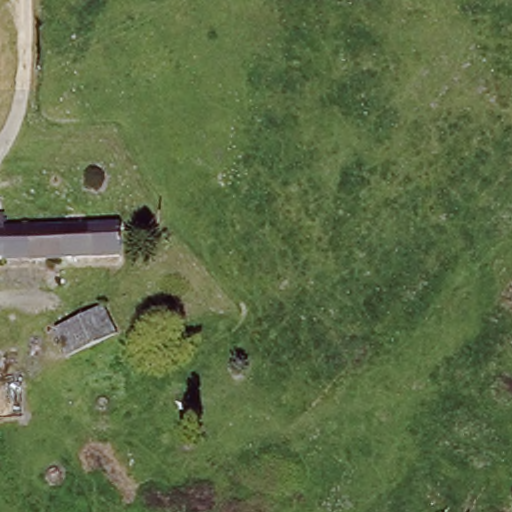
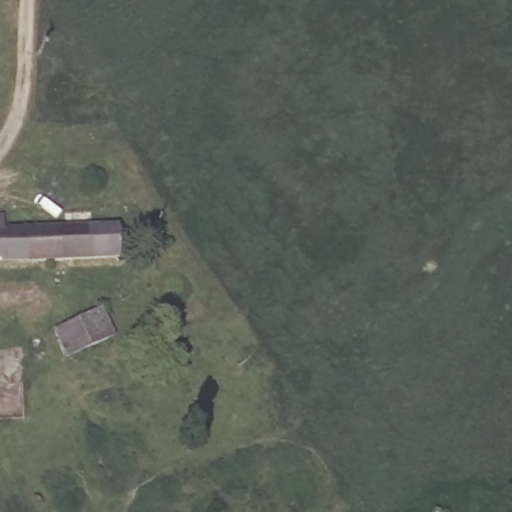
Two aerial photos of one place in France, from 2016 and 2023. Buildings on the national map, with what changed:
unchanged [(117,223),(116,258),(0,261),(0,212),(5,212),(7,224),(117,223)]
unchanged [(102,308),(113,337),(72,353),(62,324),(102,308)]

